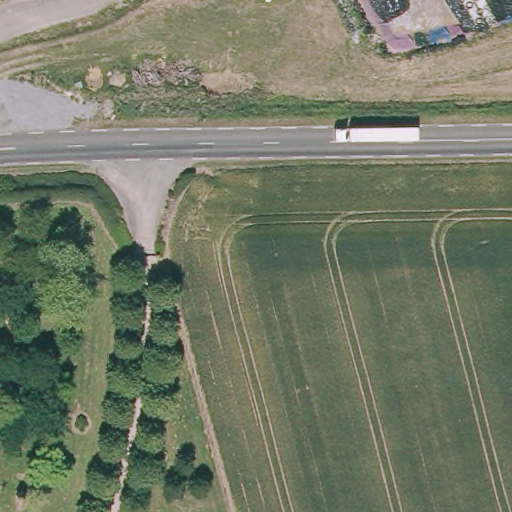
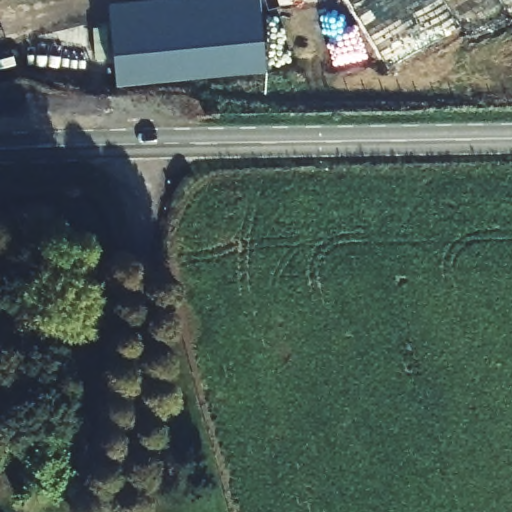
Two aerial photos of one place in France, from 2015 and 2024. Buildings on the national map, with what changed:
new [(259,0),(266,72),(116,87),(109,4),(148,0),(259,0)]

